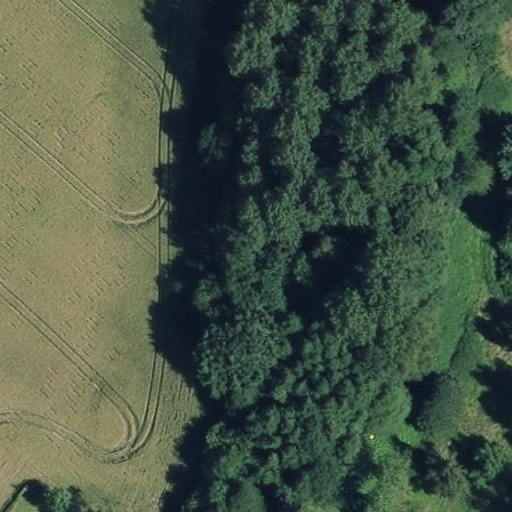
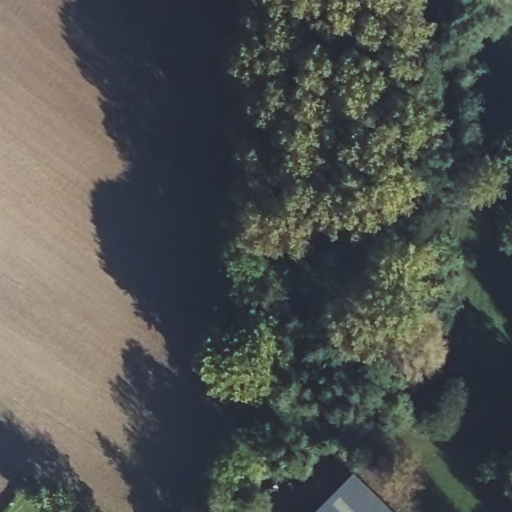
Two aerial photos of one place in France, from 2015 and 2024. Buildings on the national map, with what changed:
new [(354,474),(392,512),(316,512),(354,474)]

